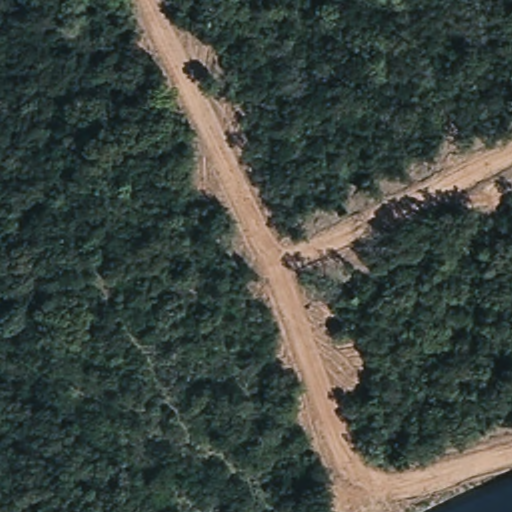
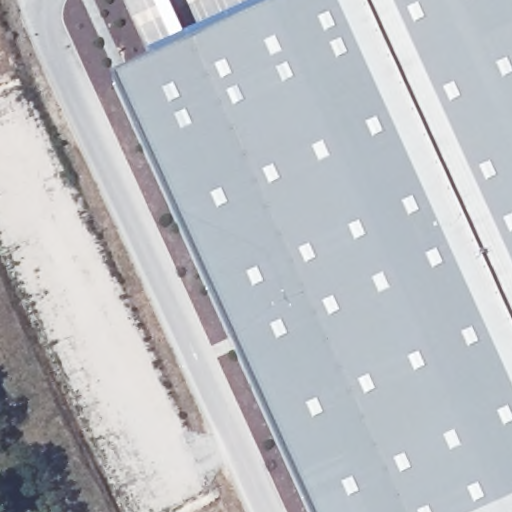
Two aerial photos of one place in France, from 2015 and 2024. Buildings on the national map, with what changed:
new [(116,87),(308,0),(512,0),(512,512),(307,512),(116,87)]

